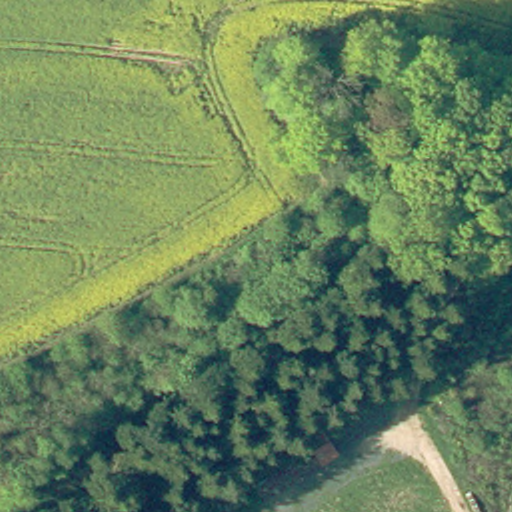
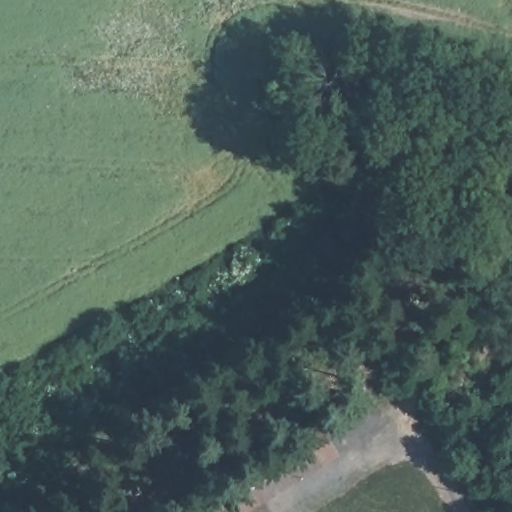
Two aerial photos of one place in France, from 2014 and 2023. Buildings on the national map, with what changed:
unchanged [(250,472),(315,435),(332,463),(268,498),(250,472)]

